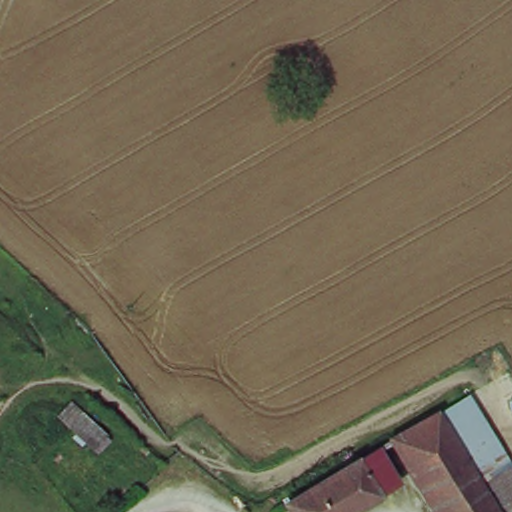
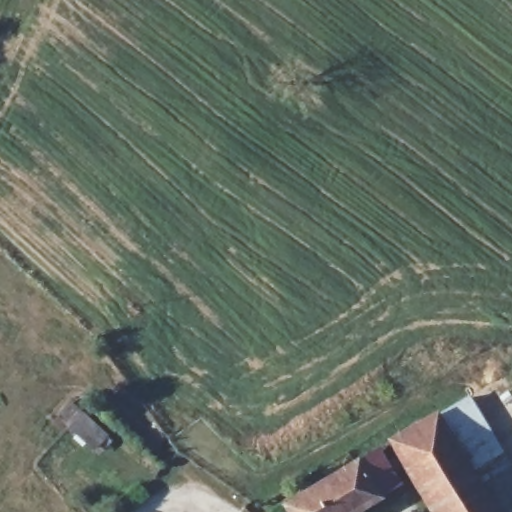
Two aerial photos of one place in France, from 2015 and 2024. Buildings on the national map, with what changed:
unchanged [(424,458),(407,429),(452,403),(471,434),(424,458)]
unchanged [(456,512),(424,458),(471,434),(512,504),(512,512),(456,512)]
unchanged [(376,493),(379,500),(358,512),(291,512),(286,502),(374,451),(394,483),(376,493)]

